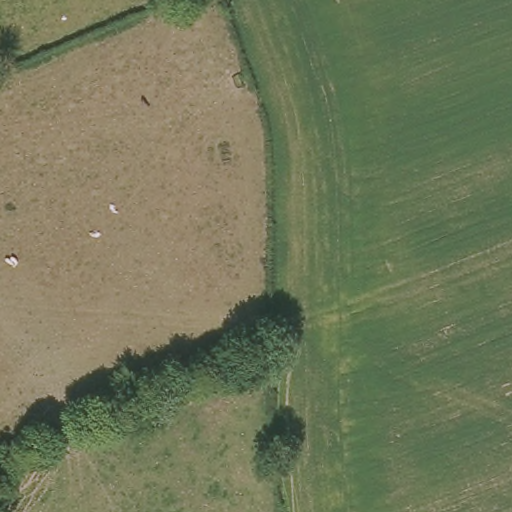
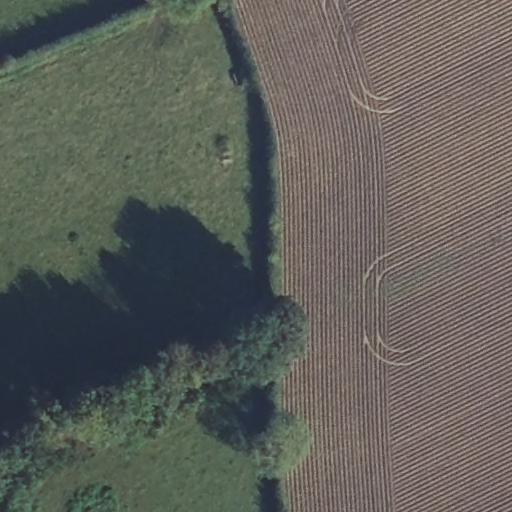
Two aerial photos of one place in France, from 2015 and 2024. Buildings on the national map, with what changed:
[]

